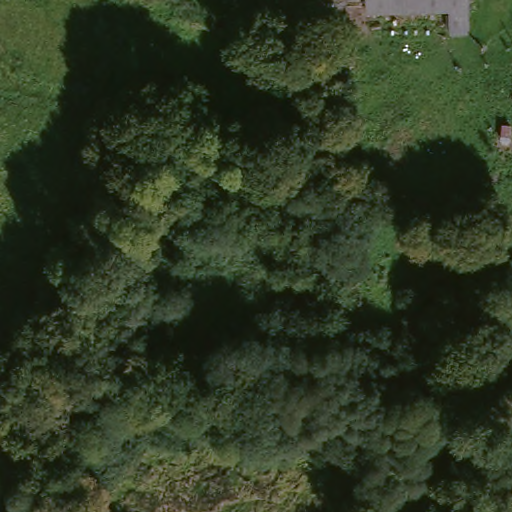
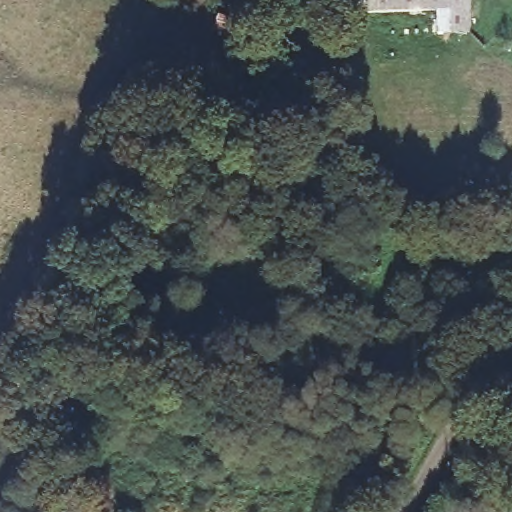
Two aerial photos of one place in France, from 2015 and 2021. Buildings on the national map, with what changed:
unchanged [(365,0),(467,0),(467,22),(365,25),(365,0)]

